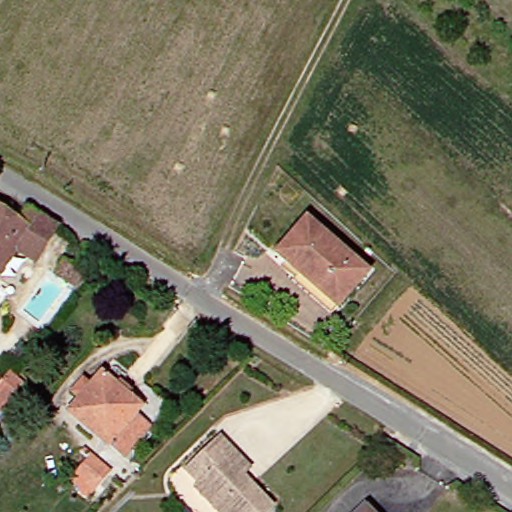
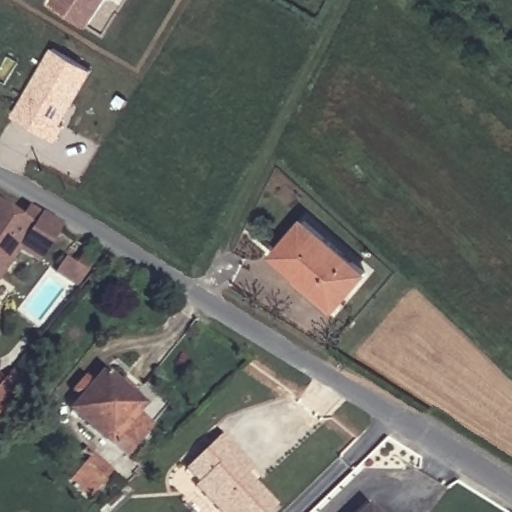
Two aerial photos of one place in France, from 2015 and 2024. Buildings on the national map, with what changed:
new [(87,27),(50,4),(53,0),(105,0),(87,27)]
new [(61,123),(65,125),(55,141),(14,115),(53,46),(93,70),(61,123)]
unchanged [(0,204),(23,220),(37,230),(21,252),(0,284),(0,204)]
unchanged [(37,230),(23,220),(31,207),(63,226),(40,264),(21,252),(37,230)]
unchanged [(298,280),(301,275),(278,254),(306,221),(366,273),(338,306),(333,311),(298,280)]
unchanged [(49,275),(60,259),(69,265),(83,245),(95,253),(70,288),(49,275)]
unchanged [(0,409),(0,384),(10,371),(23,382),(0,409)]
unchanged [(138,415),(154,428),(128,458),(75,412),(85,400),(76,392),(88,380),(96,387),(106,375),(144,408),(138,415)]
unchanged [(223,512),(199,488),(203,485),(190,471),(224,437),(238,451),(256,470),(249,476),(279,507),(275,512),(223,512)]
unchanged [(83,489),(70,479),(90,455),(111,472),(97,491),(92,496),(83,489)]
unchanged [(379,512),(370,512),(374,507),(379,512)]

